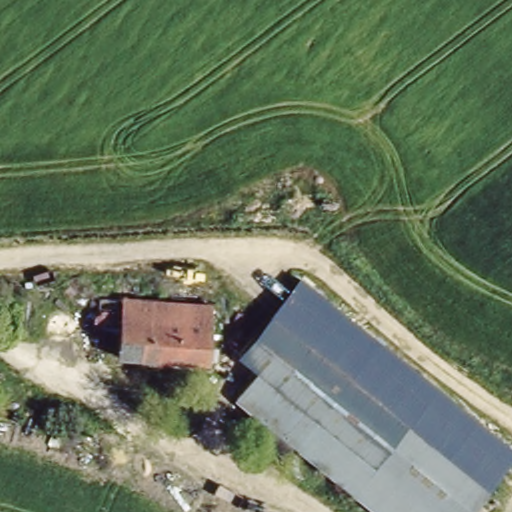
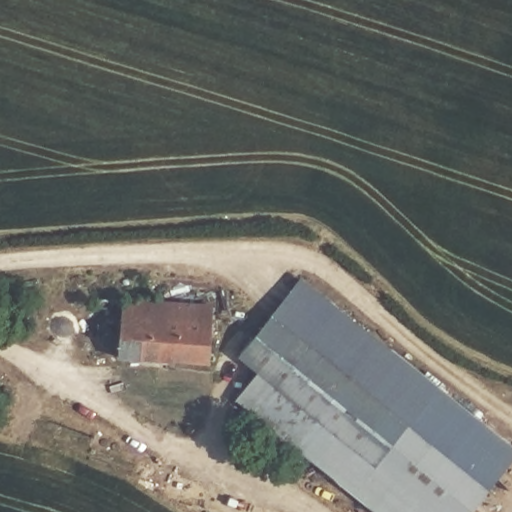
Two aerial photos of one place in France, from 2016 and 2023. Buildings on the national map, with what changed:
unchanged [(512,446),(512,456),(484,490),(270,315),(300,277),(512,446)]
unchanged [(115,360),(120,338),(92,342),(97,299),(215,307),(210,368),(115,360)]
unchanged [(405,426),(484,490),(466,512),(374,512),(235,400),(257,370),(238,356),(270,315),(405,426)]

